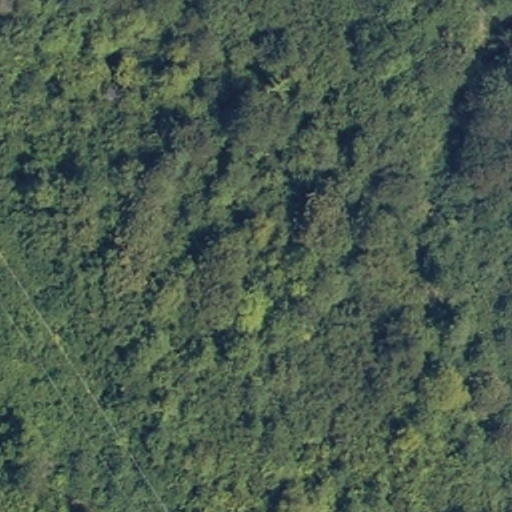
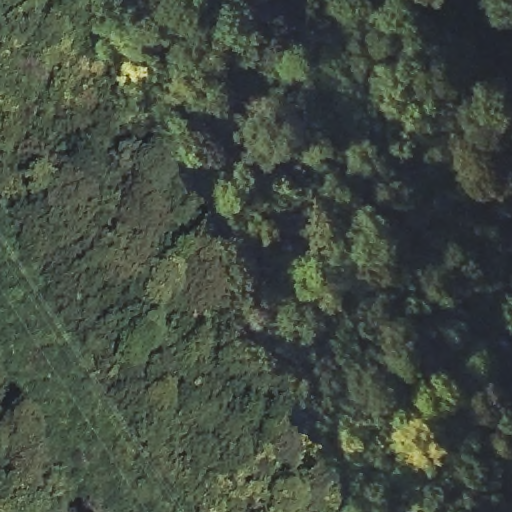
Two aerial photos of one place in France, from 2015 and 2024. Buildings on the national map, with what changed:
unchanged [(296,50),(291,51),(279,32),(296,21),(306,41),(346,19),(351,35),(366,28),(377,51),(314,80),(296,50)]

